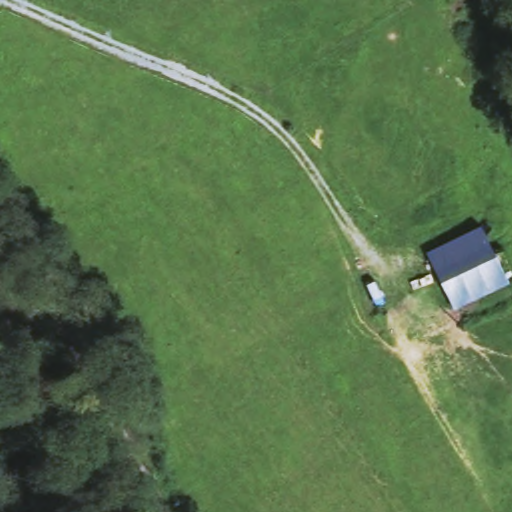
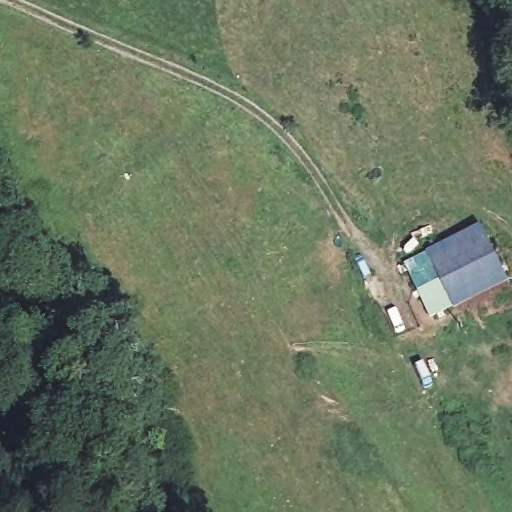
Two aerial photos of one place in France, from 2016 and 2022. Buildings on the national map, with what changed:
unchanged [(426,251),(479,227),(508,284),(451,311),(426,251)]

